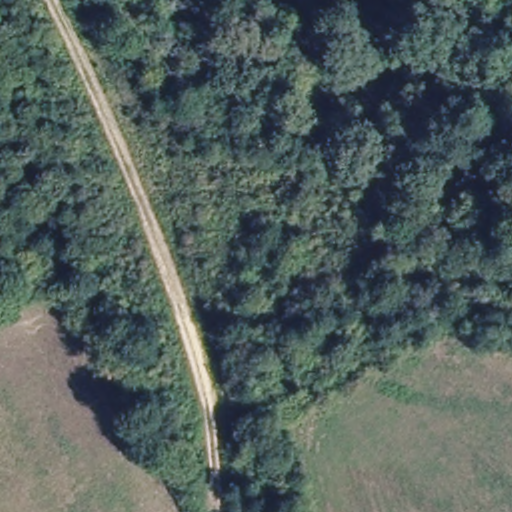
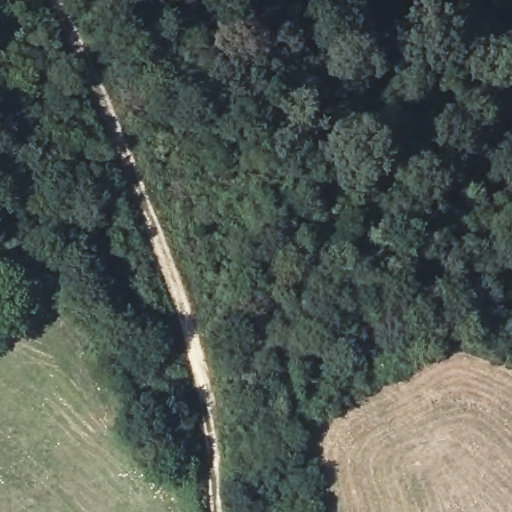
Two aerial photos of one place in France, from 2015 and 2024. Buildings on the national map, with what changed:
[]

